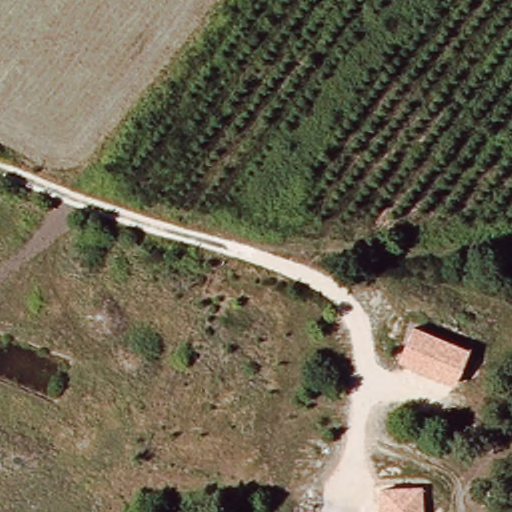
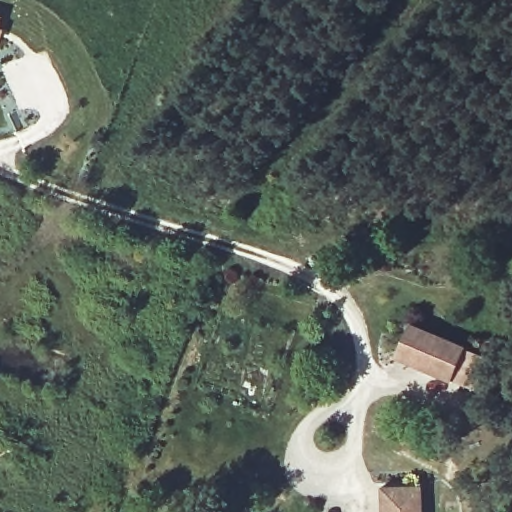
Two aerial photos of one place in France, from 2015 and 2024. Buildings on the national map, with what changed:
unchanged [(468,346),(452,382),(395,358),(410,322),(468,346)]
unchanged [(380,512),(379,485),(421,484),(422,512),(380,512)]

